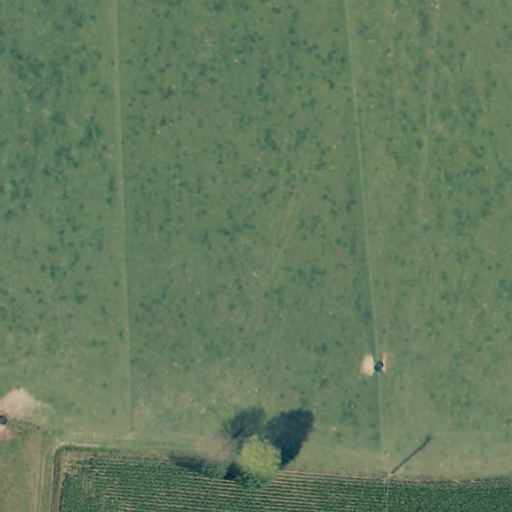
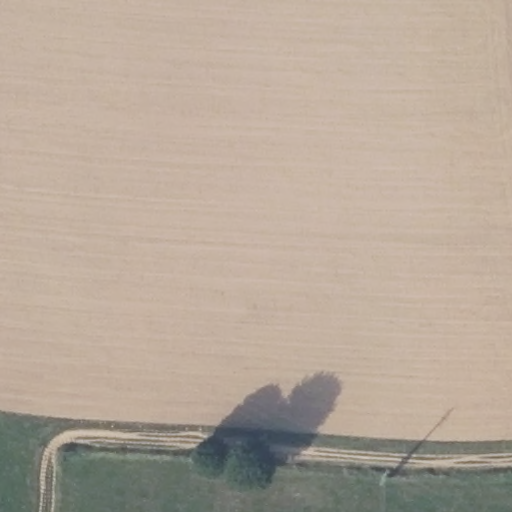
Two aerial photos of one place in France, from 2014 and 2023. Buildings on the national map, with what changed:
[]

